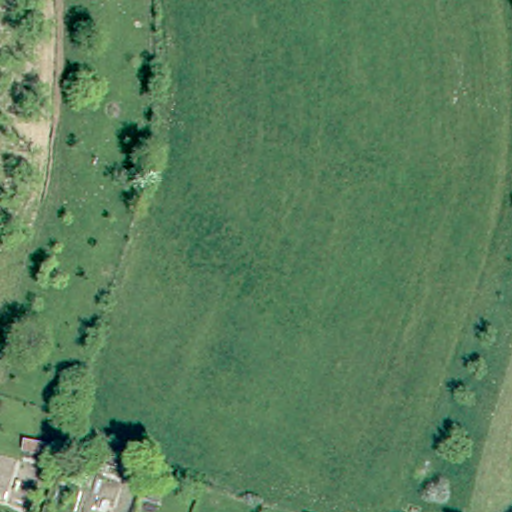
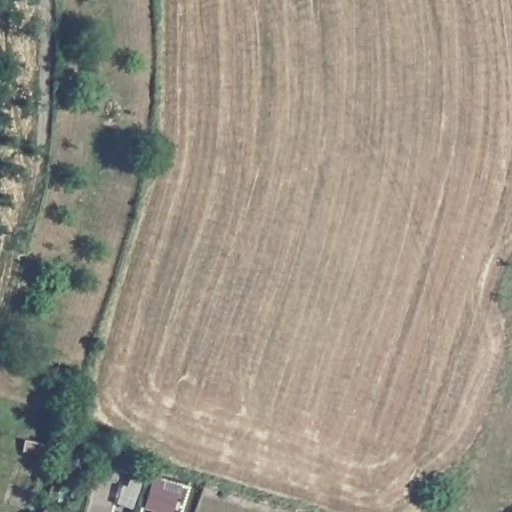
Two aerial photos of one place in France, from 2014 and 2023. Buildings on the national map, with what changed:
new [(156,480),(167,482),(165,490),(179,495),(175,512),(164,512),(146,506),(156,480)]

